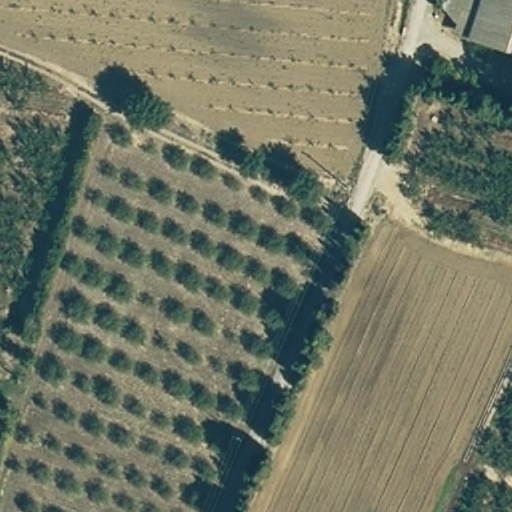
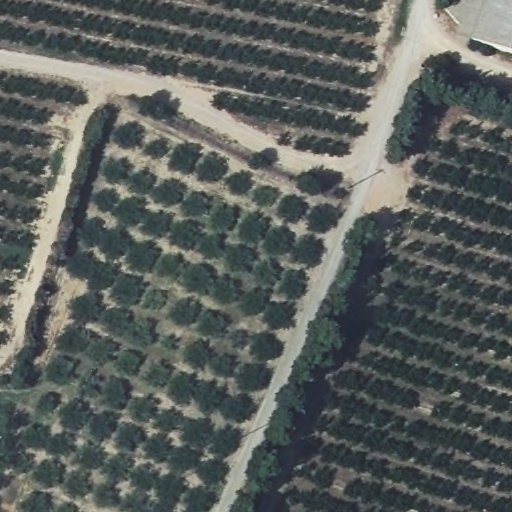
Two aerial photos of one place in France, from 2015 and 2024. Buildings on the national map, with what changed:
unchanged [(443,10),(445,0),(512,0),(512,54),(473,41),(443,10)]

